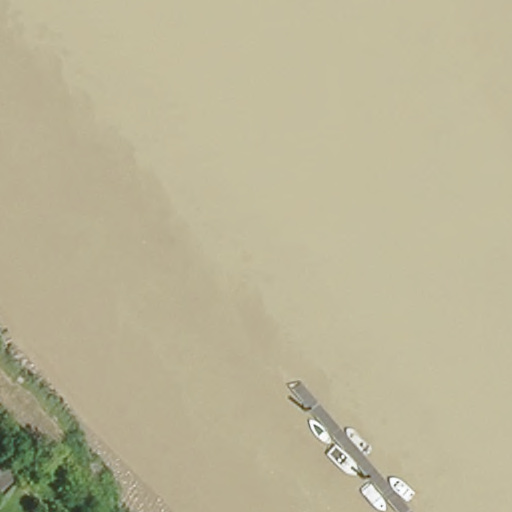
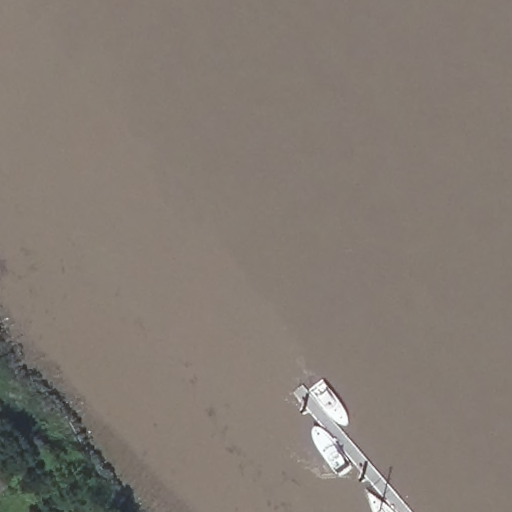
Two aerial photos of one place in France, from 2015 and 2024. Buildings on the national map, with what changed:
unchanged [(0,492),(0,466),(13,479),(0,492)]

